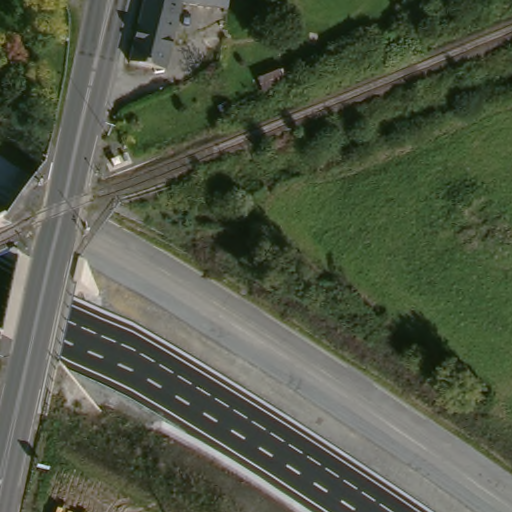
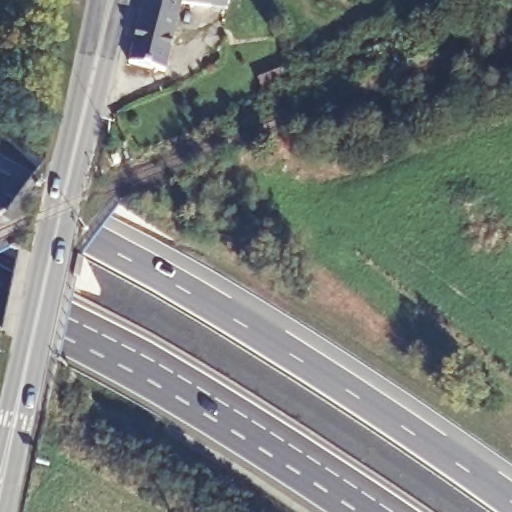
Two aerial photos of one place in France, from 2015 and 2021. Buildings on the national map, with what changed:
unchanged [(134,74),(145,26),(151,0),(185,0),(184,3),(170,80),(134,74)]
unchanged [(185,0),(229,0),(226,13),(184,3),(185,0)]

